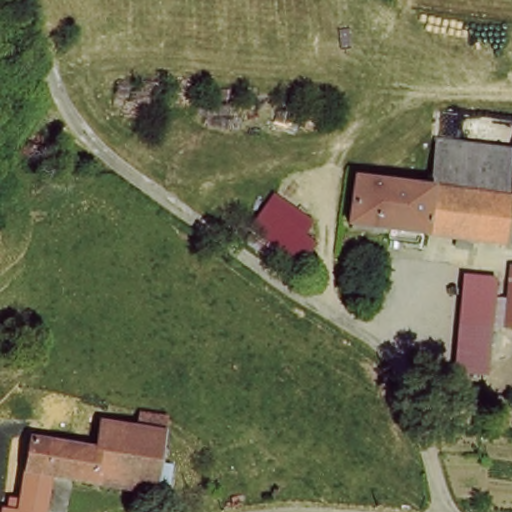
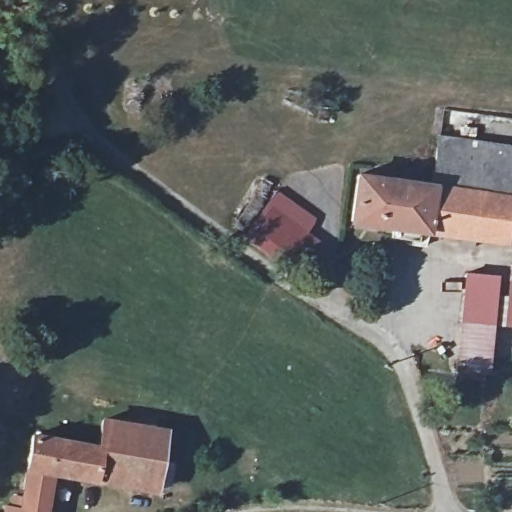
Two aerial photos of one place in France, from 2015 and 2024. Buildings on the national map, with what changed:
unchanged [(487,236),(333,217),(340,171),(415,180),(420,133),(500,143),(487,236)]
unchanged [(500,143),(512,144),(512,238),(487,236),(500,143)]
unchanged [(299,277),(250,244),(265,221),(281,231),(288,219),(323,242),(299,277)]
unchanged [(505,326),(512,265),(512,327),(505,326)]
unchanged [(457,365),(470,269),(501,273),(488,369),(457,365)]
unchanged [(100,444),(103,425),(162,435),(165,436),(155,493),(59,476),(50,512),(18,512),(37,433),(100,444)]

